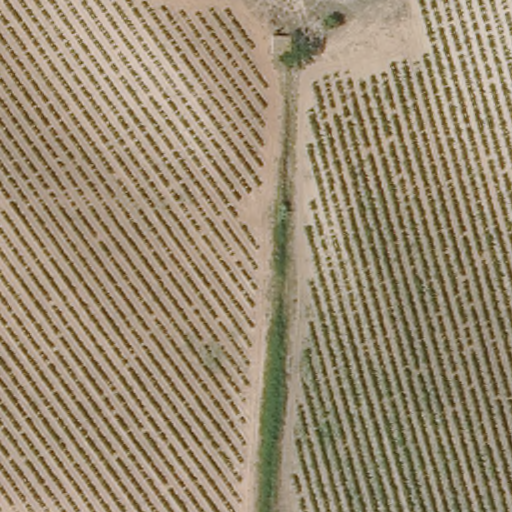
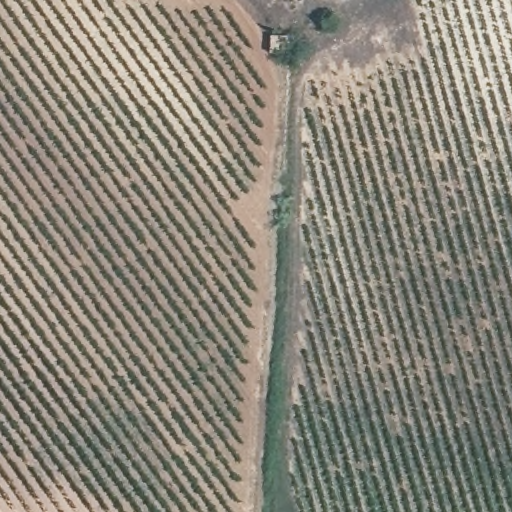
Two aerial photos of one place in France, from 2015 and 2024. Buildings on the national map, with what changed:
unchanged [(271,55),(271,34),(291,34),(291,56),(271,55)]

